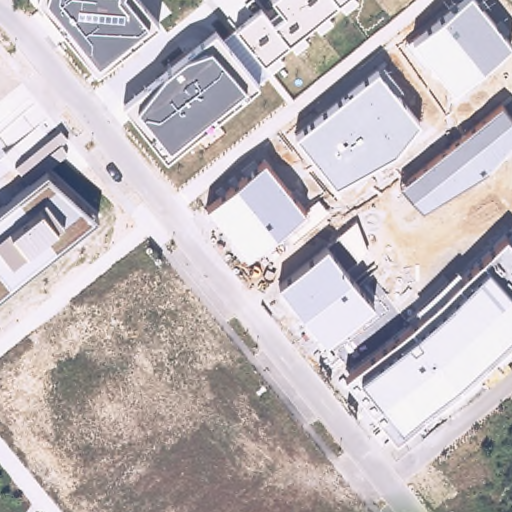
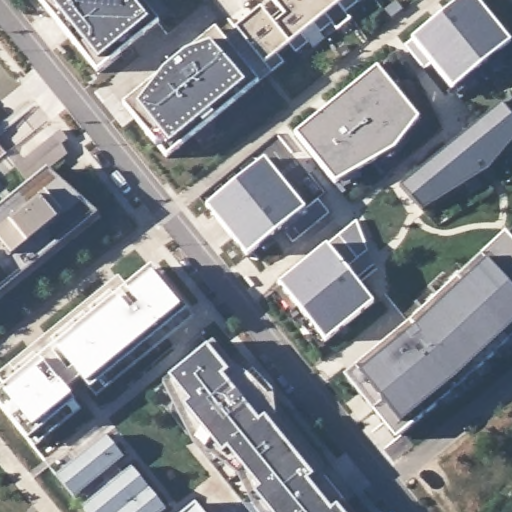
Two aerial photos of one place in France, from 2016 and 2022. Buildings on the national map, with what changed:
unchanged [(139,0),(158,22),(97,72),(39,0),(139,0)]
unchanged [(288,43),(276,53),(264,62),(235,27),(260,7),(274,24),(284,14),(272,0),(355,0),(357,2),(345,11),(337,3),(324,14),(332,23),(320,32),(312,24),(299,34),(306,42),(295,51),(288,43)]
unchanged [(448,93),(452,89),(431,63),(424,69),(404,44),(412,39),(459,0),(475,0),(509,42),(475,70),(479,76),(452,99),(448,93)]
unchanged [(284,63),(258,82),(222,37),(235,27),(264,62),(276,53),(284,63)]
unchanged [(163,71),(185,53),(215,29),(222,37),(258,82),(167,157),(124,104),(163,71)]
unchanged [(376,68),(418,118),(407,133),(411,137),(399,154),(380,165),(376,160),(356,171),(359,178),(344,186),(341,179),(335,183),(296,134),(376,68)]
unchanged [(512,118),(512,141),(488,171),(423,210),(400,184),(500,102),(512,118)]
unchanged [(14,166),(59,129),(67,138),(62,144),(67,153),(47,170),(30,184),(14,166)]
unchanged [(317,200),(329,214),(292,242),(286,234),(281,228),(269,237),(274,243),(262,252),(258,247),(247,256),(206,205),(264,159),(303,209),(317,200)]
unchanged [(30,184),(47,170),(95,215),(0,293),(0,207),(30,184)]
unchanged [(327,245),(356,220),(367,250),(346,268),(372,302),(326,340),(319,344),(310,334),(299,322),(306,317),(298,308),(291,311),(275,291),(281,288),(278,284),(327,245)]
unchanged [(416,305),(456,267),(462,272),(504,233),(512,242),(512,349),(501,360),(495,354),(476,372),(481,379),(468,391),(442,413),(436,406),(396,439),(343,376),(421,311),(416,305)]
new [(185,310),(191,319),(96,399),(89,389),(82,378),(67,391),(75,401),(82,410),(32,448),(27,441),(0,409),(0,391),(6,386),(0,381),(0,374),(120,279),(128,287),(151,269),(185,310)]
new [(191,439),(202,430),(183,408),(188,403),(169,379),(213,342),(235,369),(224,378),(251,412),(262,404),(320,474),(351,512),(250,512),(191,439)]
new [(83,453),(105,435),(124,458),(115,465),(122,474),(131,468),(166,510),(167,512),(85,512),(82,507),(108,486),(102,476),(75,498),(58,475),(83,453)]
new [(194,504),(200,512),(186,512),(194,504)]

